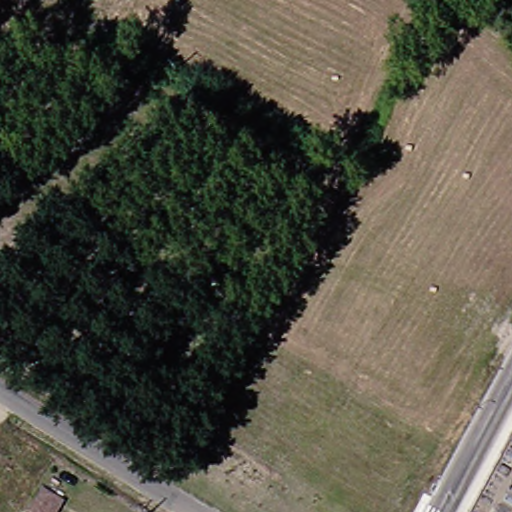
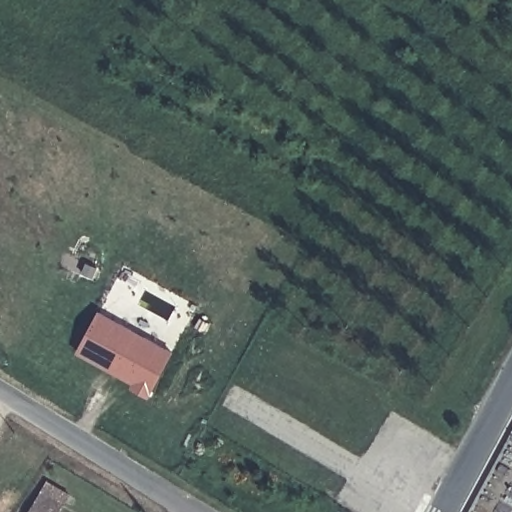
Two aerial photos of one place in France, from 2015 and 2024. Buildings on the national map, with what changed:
new [(174,350),(151,392),(75,352),(98,310),(174,350)]
unchanged [(68,501),(61,512),(28,512),(45,485),(68,501)]

